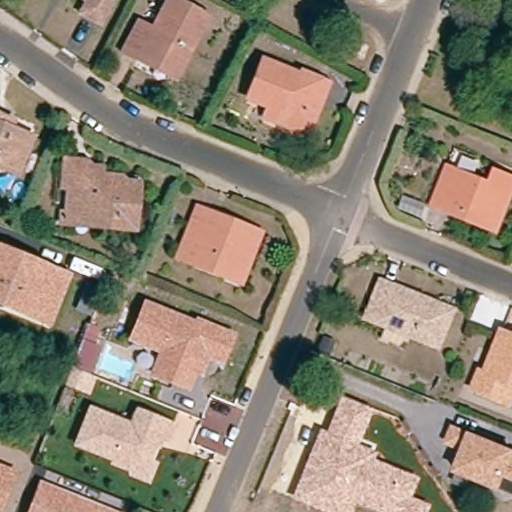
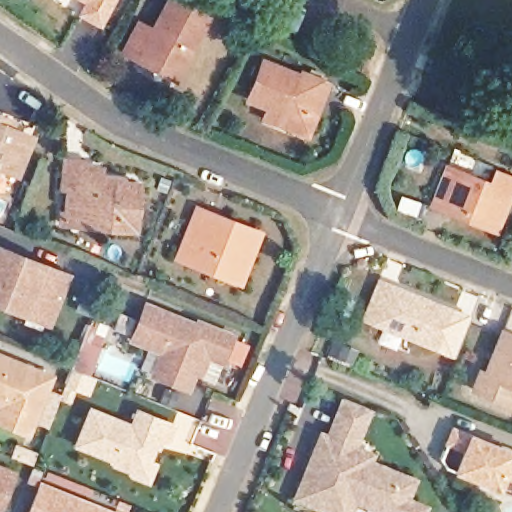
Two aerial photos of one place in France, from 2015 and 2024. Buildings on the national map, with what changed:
unchanged [(97,26),(80,16),(85,6),(72,0),(111,0),(97,26)]
unchanged [(137,61),(122,53),(137,24),(154,33),(170,1),(205,20),(177,74),(174,80),(137,61)]
unchanged [(272,110),(250,102),(264,66),(302,82),(303,77),(328,87),(310,136),(284,125),(268,119),(272,110)]
unchanged [(0,172),(0,118),(8,121),(5,130),(27,139),(12,177),(0,172)]
unchanged [(114,238),(94,237),(59,235),(58,222),(64,223),(65,196),(60,195),(61,170),(81,171),(89,176),(99,176),(99,183),(119,184),(119,190),(134,191),(131,232),(131,239),(114,238)]
unchanged [(434,202),(447,170),(487,187),(493,173),(512,181),(512,185),(493,232),(477,226),(432,209),(434,202)]
unchanged [(180,251),(197,206),(262,232),(241,285),(225,278),(177,259),(180,251)]
unchanged [(49,327),(0,306),(0,245),(72,274),(49,327)]
unchanged [(450,314),(432,354),(361,323),(377,283),(450,314)]
unchanged [(144,301),(195,321),(197,317),(237,334),(227,363),(212,359),(205,378),(199,374),(192,391),(150,377),(157,353),(129,339),(144,301)]
unchanged [(510,406),(476,393),(483,373),(490,375),(506,334),(512,337),(512,400),(510,406)]
new [(87,392),(82,390),(64,383),(70,368),(81,341),(96,347),(85,374),(89,375),(93,377),(87,392)]
new [(0,352),(56,374),(30,437),(0,425),(0,352)]
unchanged [(326,431),(341,395),(373,408),(359,446),(376,453),(375,459),(419,477),(412,497),(430,505),(427,512),(378,512),(356,503),(352,512),(324,512),(291,499),(318,428),(326,431)]
unchanged [(90,406),(131,421),(136,408),(177,425),(169,446),(159,443),(152,461),(158,463),(151,483),(132,477),(129,471),(111,466),(112,461),(75,446),(90,406)]
unchanged [(465,449),(450,442),(455,427),(472,435),(512,449),(512,475),(505,472),(498,487),(456,471),(465,449)]
unchanged [(0,509),(0,463),(16,470),(0,509)]
unchanged [(120,512),(27,512),(40,480),(120,512)]

